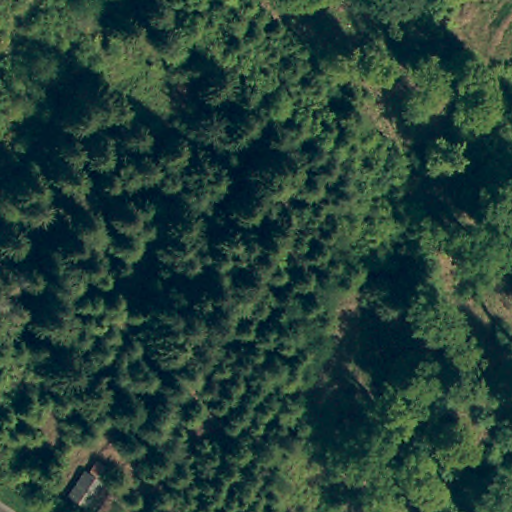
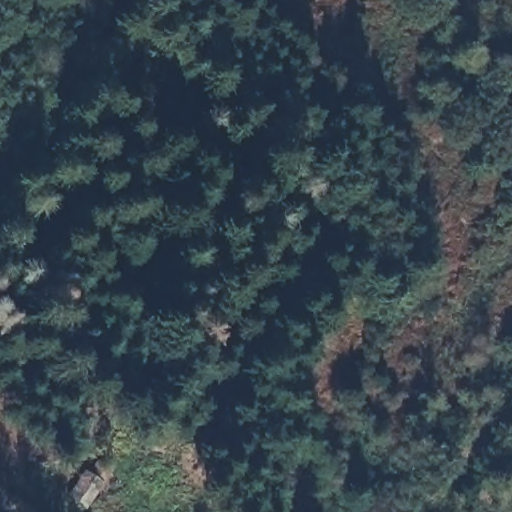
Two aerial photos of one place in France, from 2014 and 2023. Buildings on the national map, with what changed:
unchanged [(85,507),(66,493),(84,468),(90,471),(98,459),(110,459),(114,469),(85,507)]

